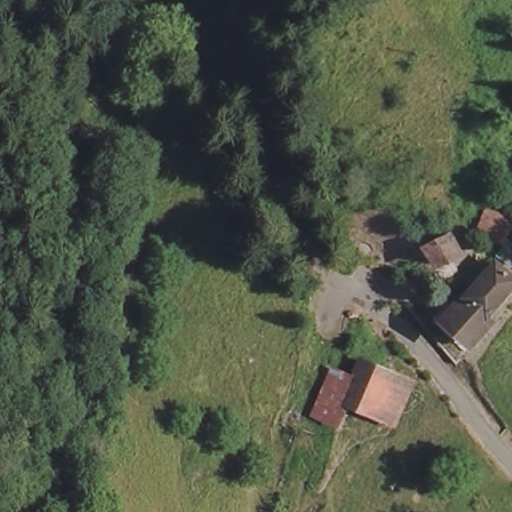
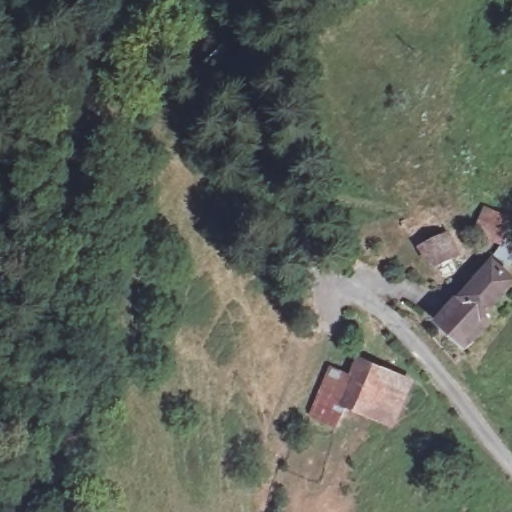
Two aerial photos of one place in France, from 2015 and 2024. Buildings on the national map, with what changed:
unchanged [(493,247),(479,240),(486,210),(510,217),(507,238),(512,241),(512,263),(509,272),(492,258),(493,247)]
unchanged [(435,264),(410,227),(432,212),(457,250),(435,264)]
unchanged [(512,283),(487,308),(495,317),(474,343),(442,326),(492,258),(509,272),(512,274),(512,283)]
unchanged [(353,399),(367,382),(380,366),(414,394),(387,426),(355,400),(353,399)]
unchanged [(353,399),(355,400),(342,417),(322,401),(349,367),(367,382),(353,399)]

